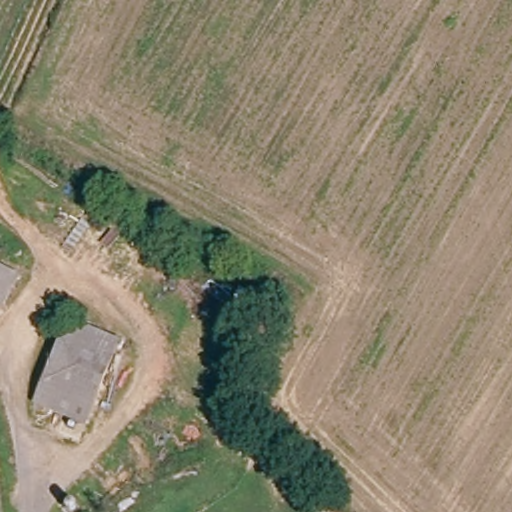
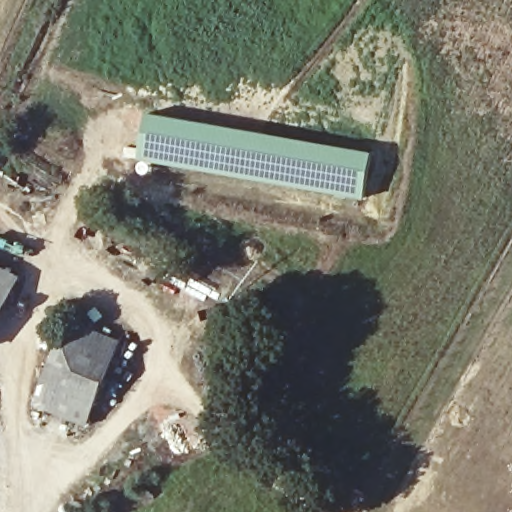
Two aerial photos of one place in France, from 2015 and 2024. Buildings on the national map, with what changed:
new [(372,153),(365,200),(140,162),(148,112),(372,153)]
unchanged [(0,318),(0,267),(21,277),(0,318)]
demolished [(167,290),(177,271),(196,282),(187,299),(167,290)]
unchanged [(75,323),(124,347),(86,442),(66,433),(71,419),(43,405),(75,323)]

